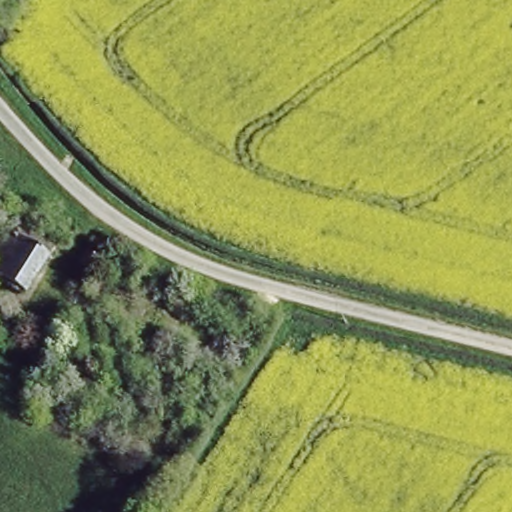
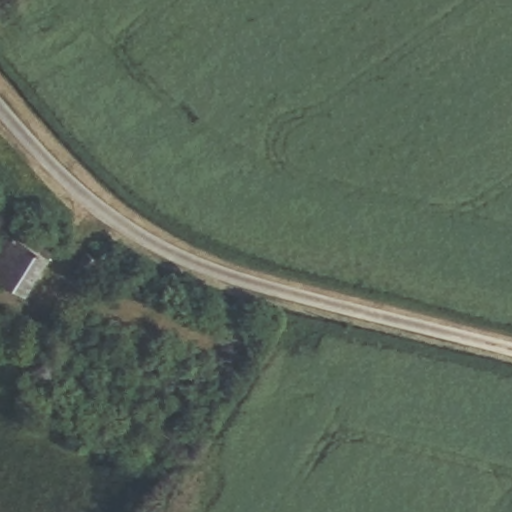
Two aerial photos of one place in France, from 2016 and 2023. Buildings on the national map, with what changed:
unchanged [(22,285),(0,274),(0,247),(10,230),(43,247),(22,285)]

